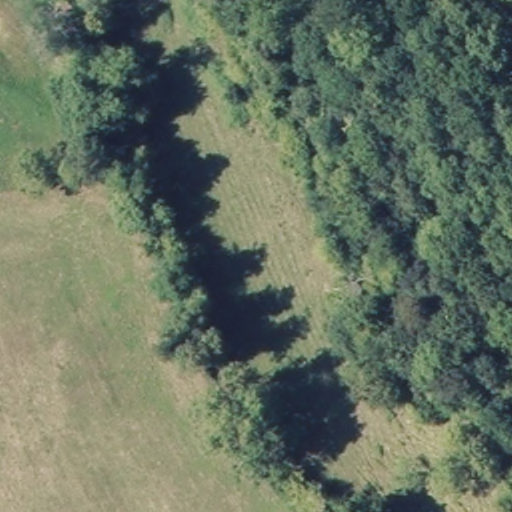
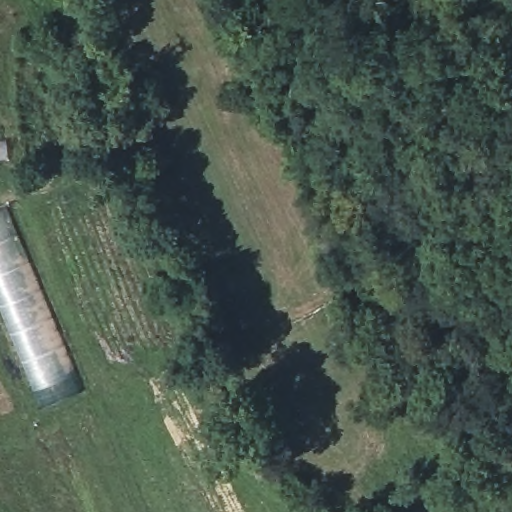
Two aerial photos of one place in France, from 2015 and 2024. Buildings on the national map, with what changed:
new [(44,405),(0,298),(0,228),(5,241),(10,239),(70,385),(74,394),(44,405)]

